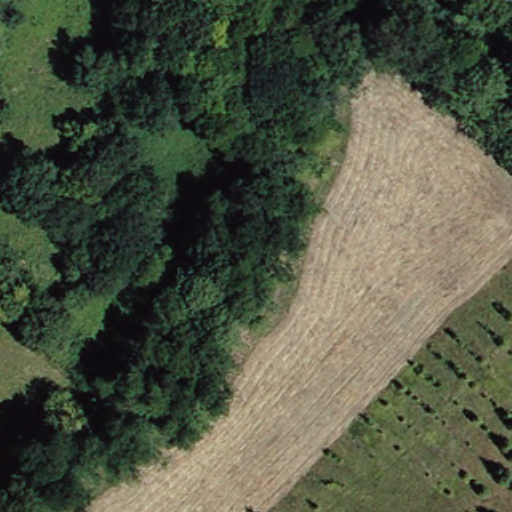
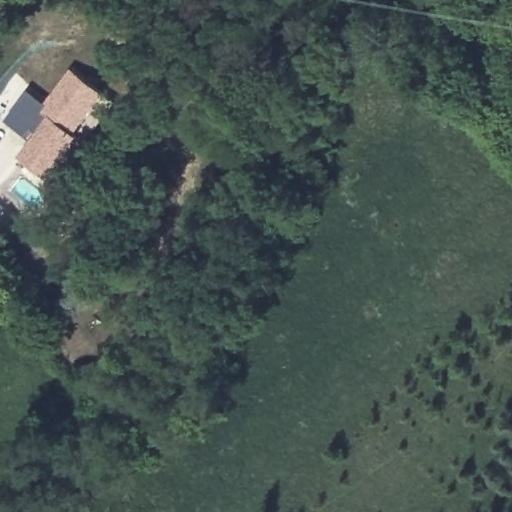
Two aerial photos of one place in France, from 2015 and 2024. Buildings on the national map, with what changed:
new [(77,135),(84,140),(50,180),(20,158),(32,142),(7,122),(31,90),(47,103),(75,69),(109,96),(77,135)]

